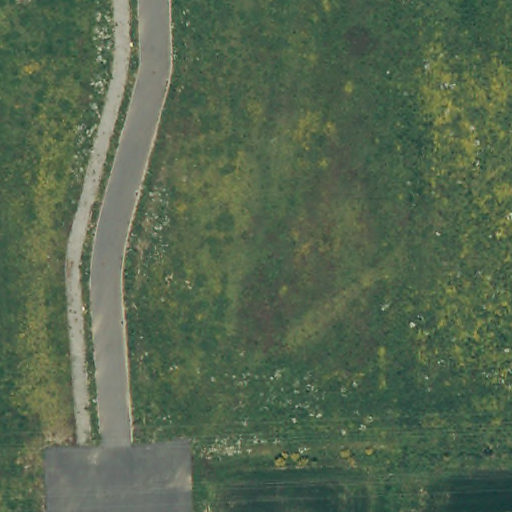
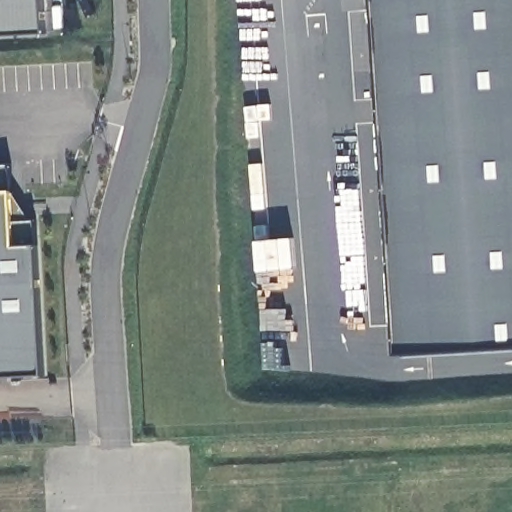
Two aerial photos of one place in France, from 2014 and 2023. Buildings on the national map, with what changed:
new [(45,32),(0,35),(0,0),(43,0),(45,32)]
new [(400,357),(379,0),(512,0),(512,349),(400,357)]
new [(11,191),(29,221),(35,221),(37,247),(43,376),(0,378),(0,166),(9,166),(11,191)]

